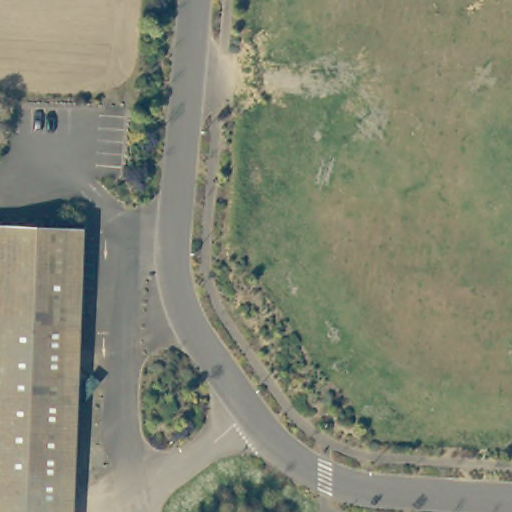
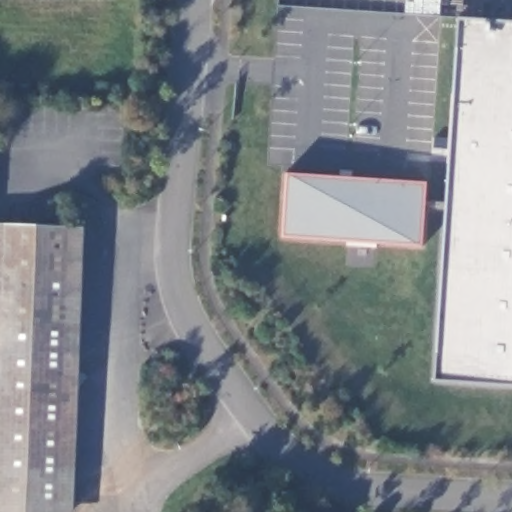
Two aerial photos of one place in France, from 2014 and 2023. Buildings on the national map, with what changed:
new [(512,386),(435,381),(458,18),(512,22),(512,386)]
new [(426,183),(421,248),(281,238),(286,174),(426,183)]
unchanged [(40,225),(29,512),(0,512),(0,224),(40,225)]
unchanged [(45,512),(29,512),(40,225),(56,225),(45,512)]
unchanged [(73,512),(45,512),(56,225),(84,226),(73,512)]

